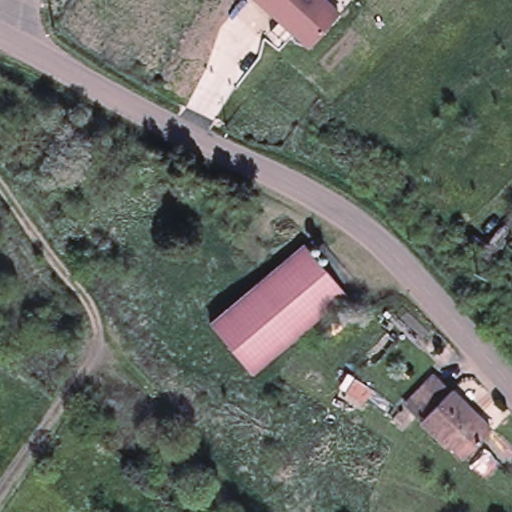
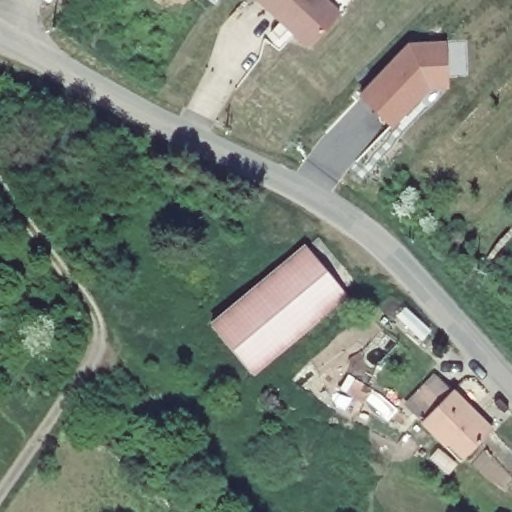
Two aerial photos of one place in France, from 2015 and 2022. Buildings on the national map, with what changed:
unchanged [(322,0),(338,16),(307,49),(292,34),(280,22),(256,0),(322,0)]
new [(410,47),(445,45),(447,88),(429,89),(392,127),(360,97),(410,47)]
unchanged [(211,325),(250,293),(308,246),(347,293),(252,370),(250,372),(242,362),(211,325)]
unchanged [(402,405),(432,374),(448,389),(417,420),(402,405)]
unchanged [(366,402),(348,391),(343,388),(350,376),(355,378),(374,390),(366,402)]
unchanged [(447,440),(442,443),(417,420),(448,389),(488,427),(462,455),(447,440)]

